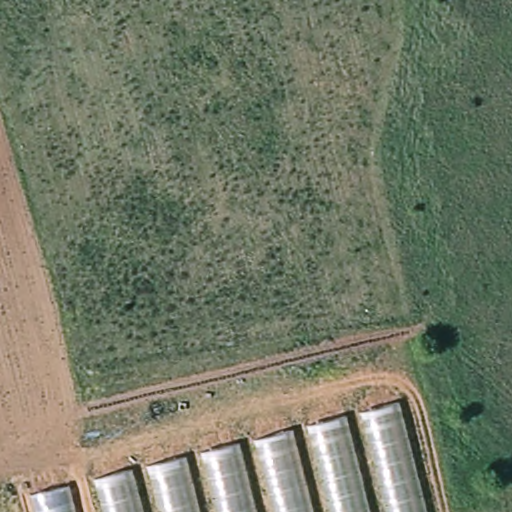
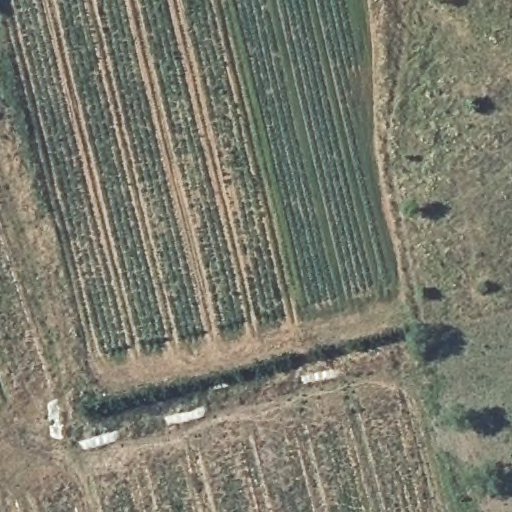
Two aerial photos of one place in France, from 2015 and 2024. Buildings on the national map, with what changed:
new [(0,245),(48,385),(0,401),(0,245)]
new [(93,480),(398,404),(424,512),(100,512),(93,480)]
new [(74,512),(0,512),(0,503),(68,486),(74,512)]

